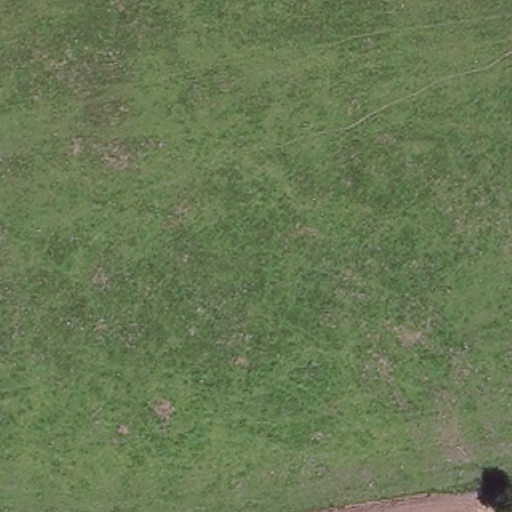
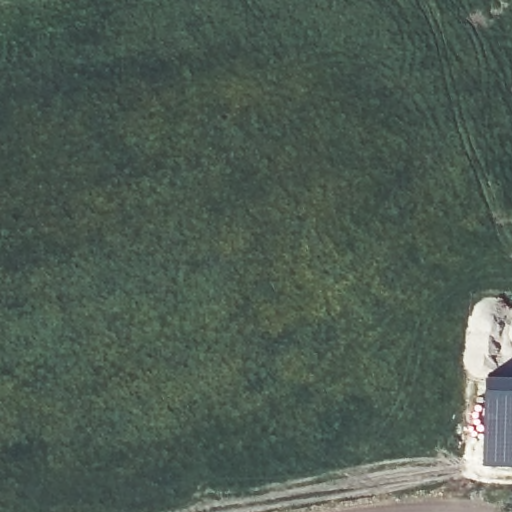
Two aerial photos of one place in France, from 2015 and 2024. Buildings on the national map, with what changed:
new [(486,373),(512,374),(512,466),(482,465),(486,373)]

